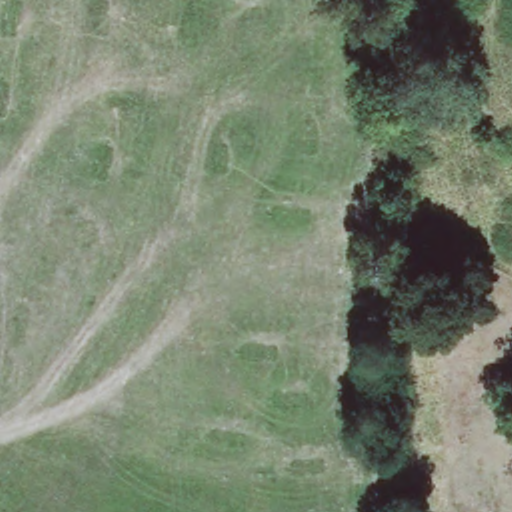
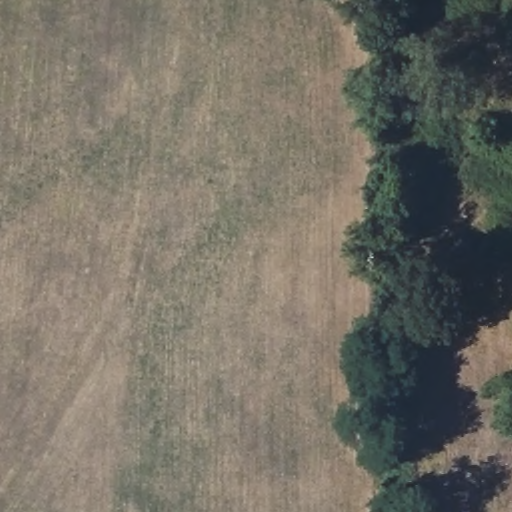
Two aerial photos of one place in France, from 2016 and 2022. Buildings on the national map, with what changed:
[]

